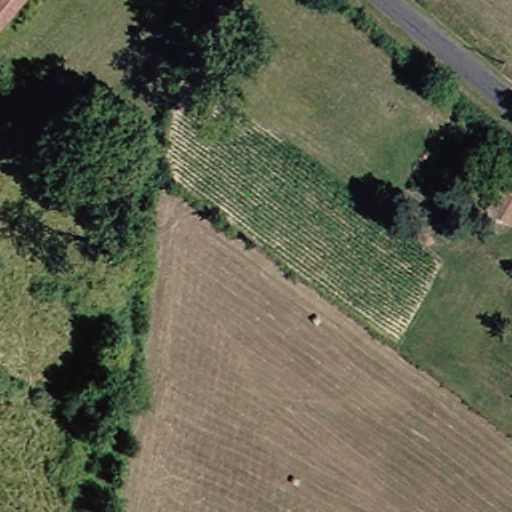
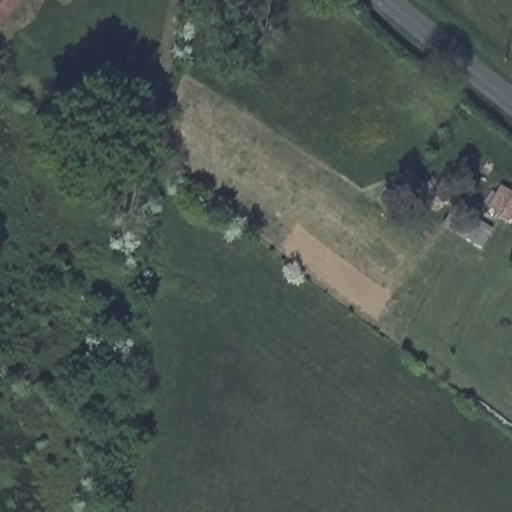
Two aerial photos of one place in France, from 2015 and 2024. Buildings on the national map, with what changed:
unchanged [(0,34),(0,0),(33,0),(2,35),(0,34)]

